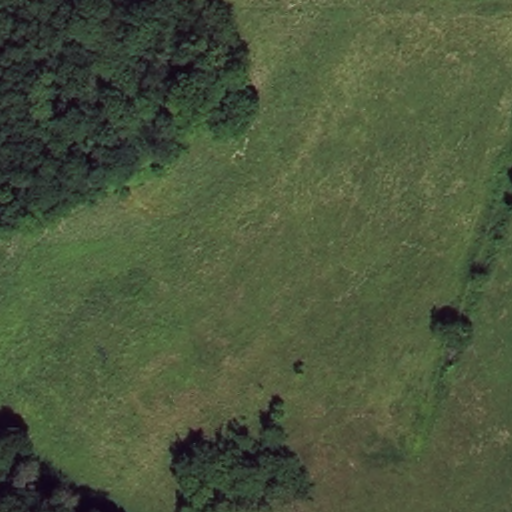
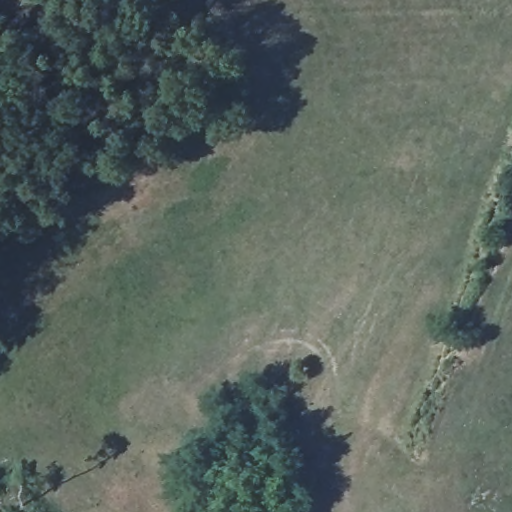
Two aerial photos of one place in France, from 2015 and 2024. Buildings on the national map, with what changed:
[]

